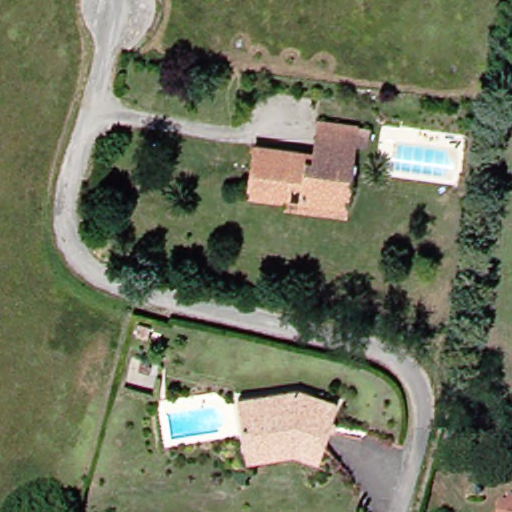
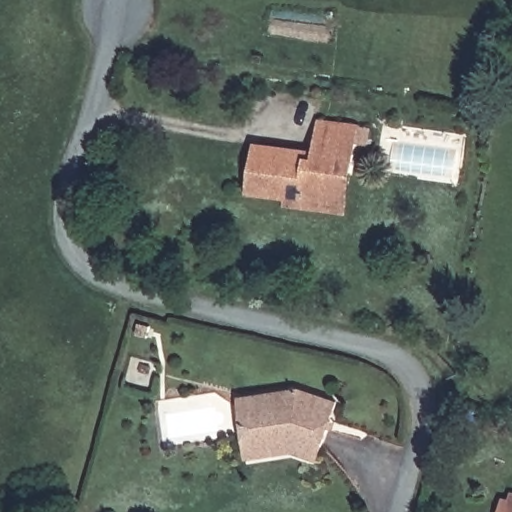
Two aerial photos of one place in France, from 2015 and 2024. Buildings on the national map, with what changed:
unchanged [(377,125),(375,139),(363,137),(356,192),(334,189),(332,203),(309,200),(313,170),(300,168),(298,184),(280,182),(279,189),(259,187),(265,141),(309,148),(308,155),(323,157),(328,118),(365,123),(377,125)]
unchanged [(140,325),(152,328),(148,339),(137,336),(140,325)]
unchanged [(331,440),(328,447),(300,437),(251,444),(244,398),(304,389),(343,402),(331,440)]
unchanged [(512,435),(511,441),(485,434),(489,419),(512,424),(512,435)]
unchanged [(512,505),(512,512),(510,512),(512,505)]

